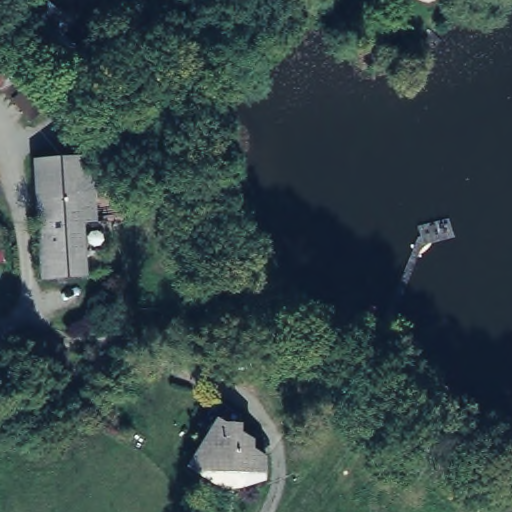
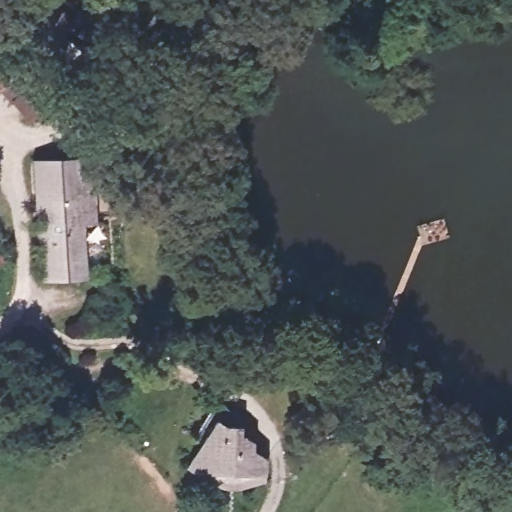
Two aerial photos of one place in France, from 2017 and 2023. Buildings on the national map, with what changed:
unchanged [(92,202),(82,202),(86,272),(41,274),(36,152),(89,149),(92,202)]
unchanged [(249,440),(265,456),(264,483),(258,487),(244,491),(220,487),(205,478),(191,467),(197,411),(249,418),(249,440)]

